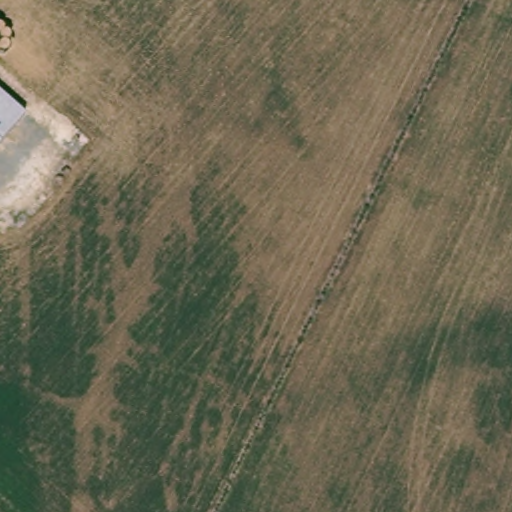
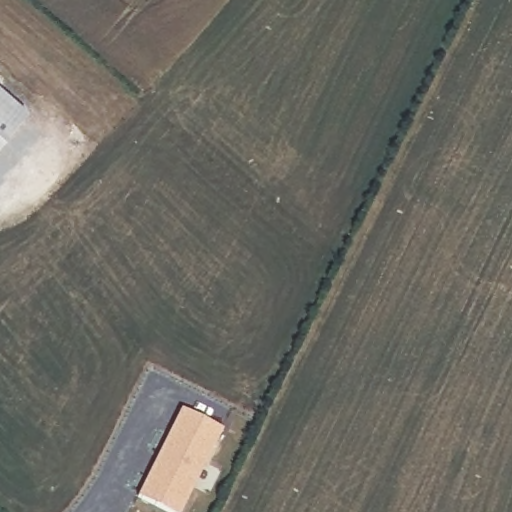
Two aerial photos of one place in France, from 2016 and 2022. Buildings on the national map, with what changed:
unchanged [(25,113),(0,142),(0,91),(25,113)]
new [(222,428),(181,512),(166,512),(137,499),(181,408),(222,428)]

